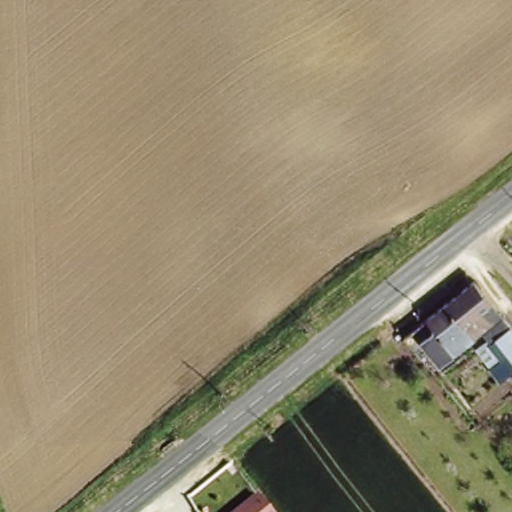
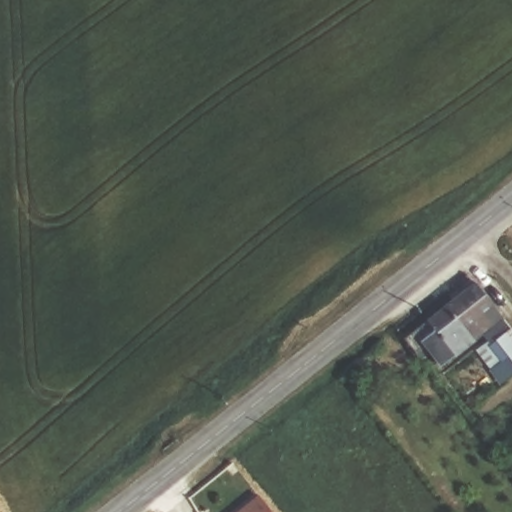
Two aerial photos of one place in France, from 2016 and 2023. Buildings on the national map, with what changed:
unchanged [(469,279),(496,313),(435,362),(407,328),(469,279)]
unchanged [(505,325),(512,335),(512,367),(489,337),(505,325)]
unchanged [(274,512),(231,512),(258,490),(274,512)]

